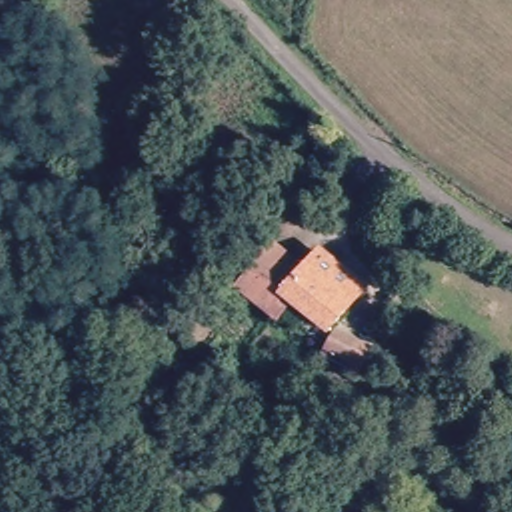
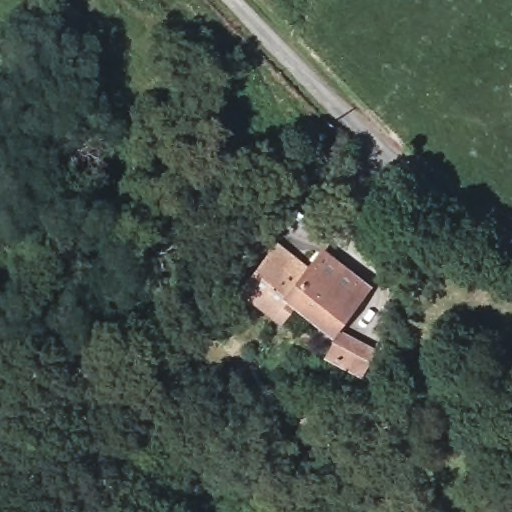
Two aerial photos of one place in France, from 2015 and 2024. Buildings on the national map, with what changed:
unchanged [(363,289),(329,333),(282,298),(258,279),(277,254),(302,273),(317,253),(363,289)]

